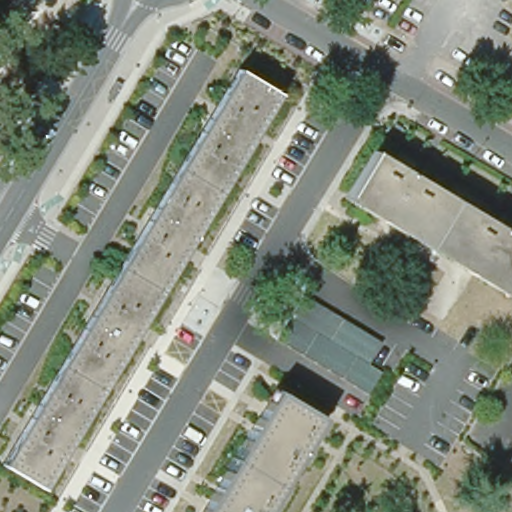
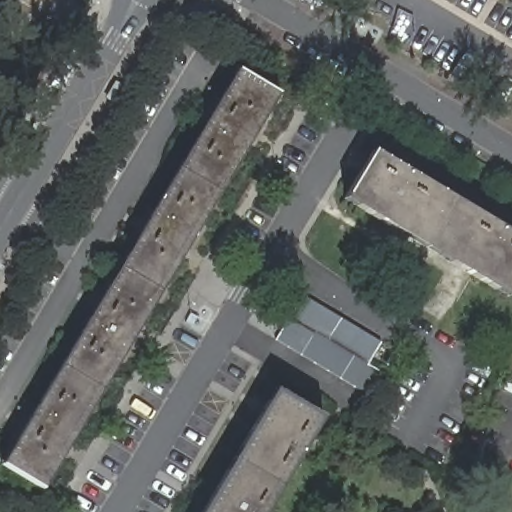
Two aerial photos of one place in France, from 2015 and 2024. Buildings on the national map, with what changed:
unchanged [(237,70),(278,95),(42,490),(0,465),(237,70)]
unchanged [(372,153),(512,238),(512,294),(507,301),(343,200),(372,153)]
unchanged [(379,336),(366,359),(360,355),(331,337),(317,329),(302,320),(288,311),(283,308),(293,293),(297,288),(379,336)]
unchanged [(366,388),(272,332),(283,308),(288,311),(302,320),(317,329),(331,337),(360,355),(366,359),(375,364),(379,366),(380,367),(366,388)]
unchanged [(323,419),(267,512),(202,512),(276,390),(323,419)]

